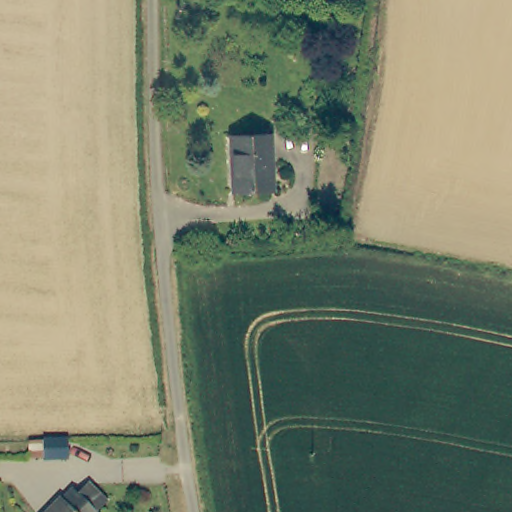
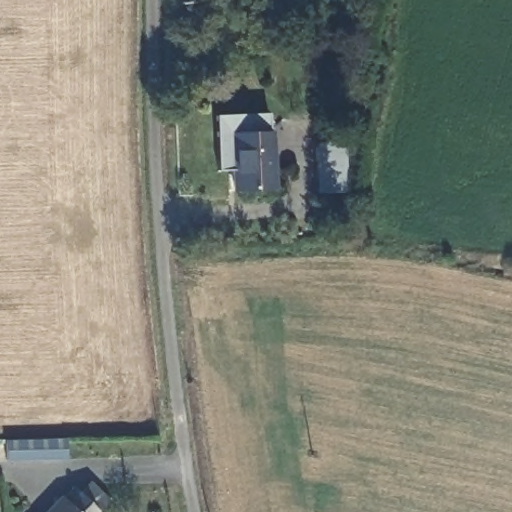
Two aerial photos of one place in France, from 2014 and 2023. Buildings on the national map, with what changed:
unchanged [(274,188),(236,189),(233,134),(273,133),(274,188)]
unchanged [(68,457),(30,458),(30,444),(67,443),(68,457)]
unchanged [(95,512),(50,512),(71,490),(95,512)]

